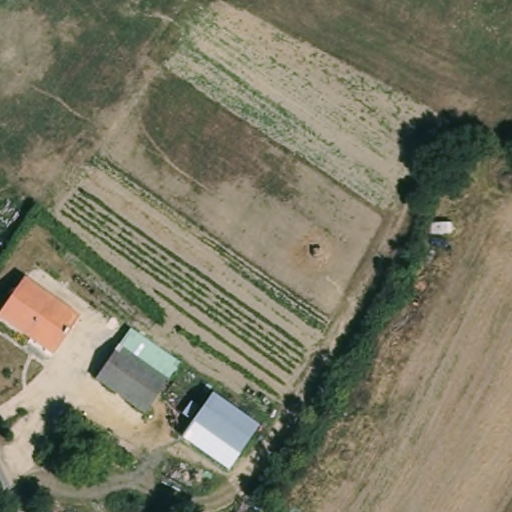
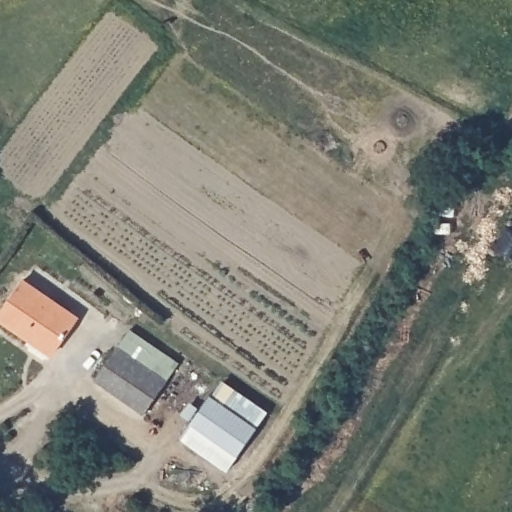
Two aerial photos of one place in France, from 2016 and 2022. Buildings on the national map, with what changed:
unchanged [(87,315),(65,357),(3,322),(24,280),(87,315)]
unchanged [(171,380),(149,413),(100,380),(122,348),(171,380)]
unchanged [(263,427),(241,461),(192,427),(213,393),(263,427)]

